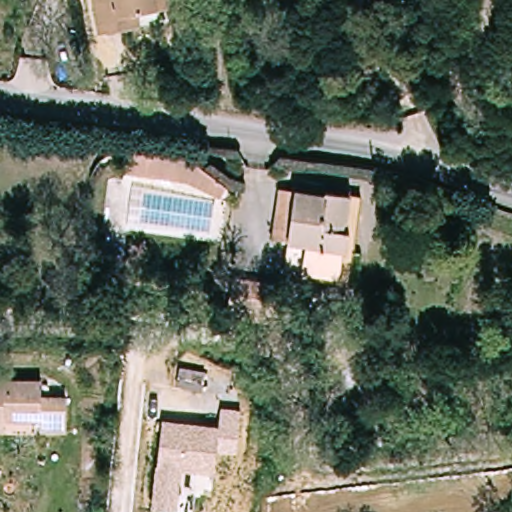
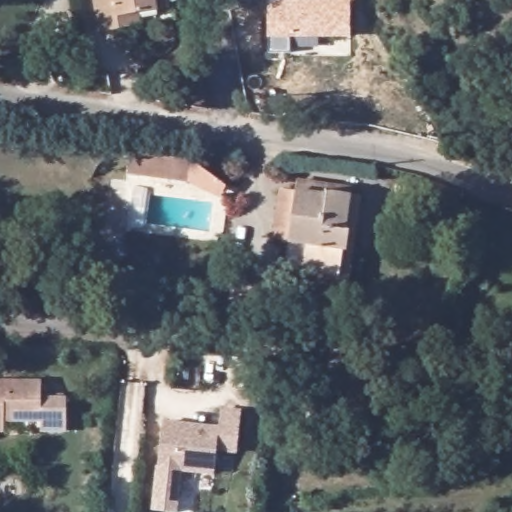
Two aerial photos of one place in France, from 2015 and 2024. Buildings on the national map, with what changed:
unchanged [(127,34),(108,36),(102,0),(176,0),(178,11),(170,12),(145,17),(150,30),(127,34)]
new [(356,2),(351,1),(352,37),(292,38),(291,52),(269,53),(270,39),(267,39),(266,0),(356,0),(356,2)]
unchanged [(191,182),(130,176),(137,150),(197,157),(230,185),(226,203),(191,182)]
unchanged [(306,276),(309,247),(275,238),(282,188),(306,187),(356,194),(345,278),(306,276)]
unchanged [(0,380),(49,383),(49,398),(74,400),(71,433),(43,430),(41,417),(9,416),(10,429),(0,429),(0,380)]
unchanged [(236,454),(216,452),(213,475),(182,473),(177,512),(160,512),(152,512),(163,421),(217,427),(222,408),(242,412),(236,454)]
demolished [(447,428),(478,422),(483,447),(455,452),(447,428)]

